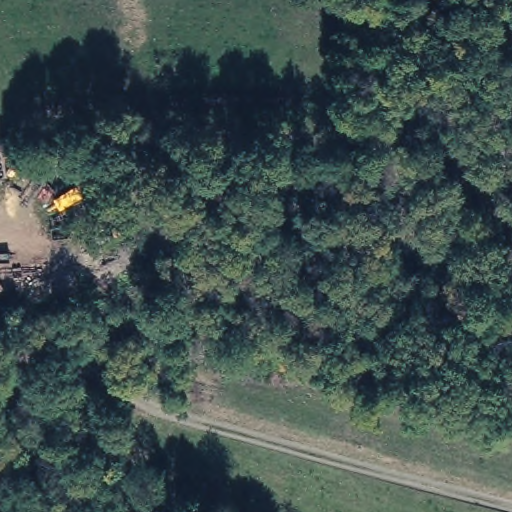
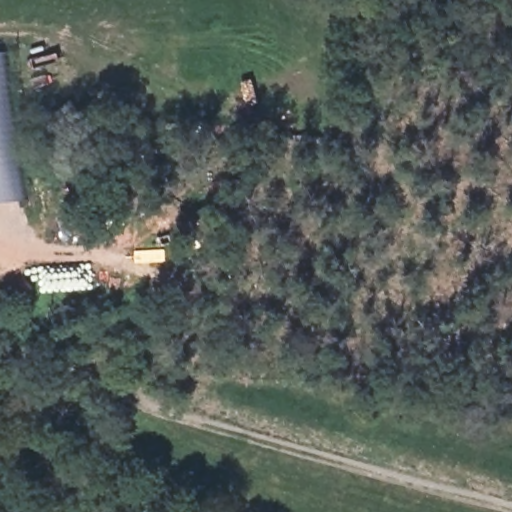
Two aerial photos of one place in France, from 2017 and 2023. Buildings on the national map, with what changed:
new [(0,201),(0,51),(5,50),(26,198),(0,201)]

